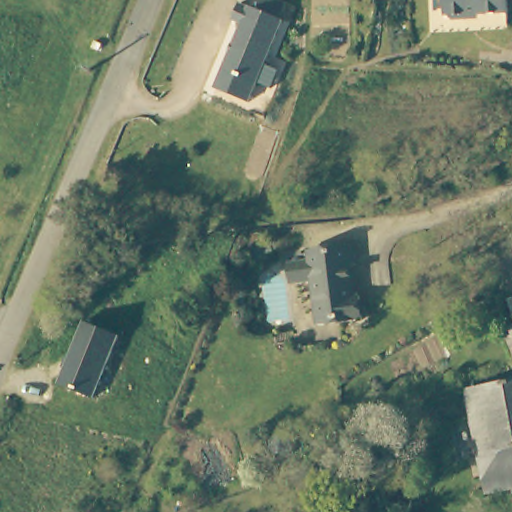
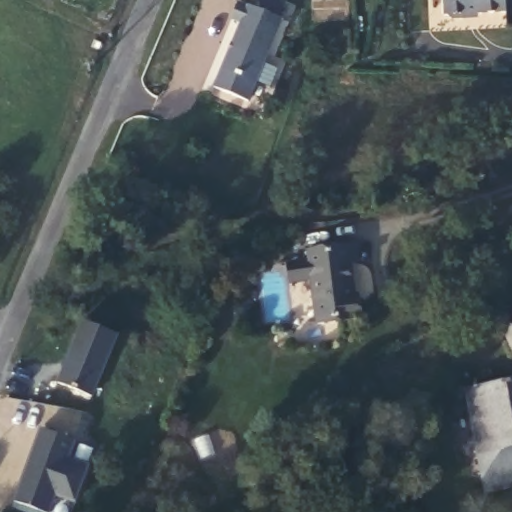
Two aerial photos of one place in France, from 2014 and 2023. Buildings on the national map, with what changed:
unchanged [(266,61),(257,82),(223,67),(242,20),(232,16),(240,0),(249,5),(250,3),(254,5),(255,0),(287,0),(281,15),(286,16),(274,42),(288,49),(280,67),(266,61)]
unchanged [(507,0),(507,8),(469,10),(465,15),(453,15),(452,13),(449,11),(446,11),(445,0),(507,0)]
unchanged [(358,266),(355,266),(356,292),(363,292),(365,318),(320,323),(315,278),(292,280),(291,260),(296,260),(312,258),(312,248),(357,244),(358,266)]
unchanged [(505,305),(502,300),(512,296),(512,318),(505,305)]
unchanged [(58,382),(82,321),(117,336),(92,397),(58,382)]
unchanged [(497,329),(512,322),(512,362),(497,329)]
unchanged [(488,504),(486,491),(466,388),(512,379),(512,486),(512,489),(512,499),(488,504)]
new [(76,441),(70,458),(90,466),(77,503),(57,496),(50,512),(41,512),(15,502),(42,428),(76,441)]

